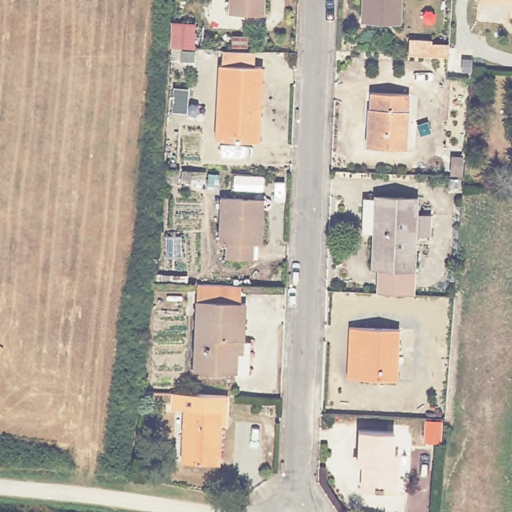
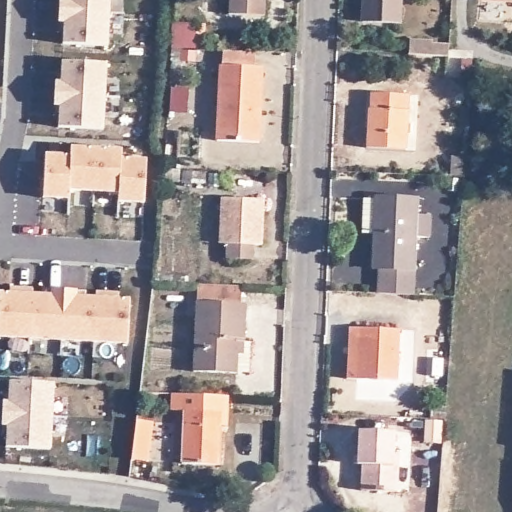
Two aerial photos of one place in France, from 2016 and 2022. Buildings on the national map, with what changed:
new [(110,0),(109,12),(59,10),(59,0),(110,0)]
unchanged [(229,13),(230,0),(265,0),(264,15),(229,13)]
unchanged [(358,19),(359,0),(397,0),(396,20),(358,19)]
unchanged [(506,0),(512,0),(512,1),(506,0)]
new [(59,10),(109,12),(107,46),(63,44),(64,25),(58,25),(59,10)]
new [(409,39),(432,40),(432,44),(448,45),(448,56),(408,55),(409,39)]
unchanged [(479,57),(478,75),(477,85),(455,83),(456,64),(457,56),(479,57)]
new [(55,80),(61,80),(62,61),(107,64),(105,96),(55,94),(55,80)]
unchanged [(260,68),(257,144),(216,141),(219,66),(260,68)]
unchanged [(367,146),(368,106),(371,106),(372,90),(408,92),(405,149),(367,146)]
new [(55,94),(105,96),(103,130),(59,127),(60,109),(54,108),(55,94)]
new [(70,155),(71,147),(96,148),(94,191),(70,190),(70,155)]
new [(96,148),(122,150),(118,192),(94,191),(96,148)]
new [(45,154),(70,155),(70,190),(69,199),(43,197),(45,154)]
new [(121,158),(146,160),(144,203),(118,201),(121,158)]
unchanged [(430,217),(429,240),(416,240),(413,294),(377,292),(378,268),(372,268),(373,228),(363,227),(365,200),(375,200),(375,198),(417,200),(417,217),(430,217)]
unchanged [(261,246),(253,246),(252,261),(224,259),(225,245),(218,244),(221,199),(263,200),(261,246)]
unchanged [(246,371),(236,370),(192,367),(197,280),(240,282),(240,299),(245,300),(244,338),(247,338),(246,371)]
new [(17,287),(32,288),(32,294),(30,338),(0,337),(0,292),(17,293),(17,287)]
new [(32,294),(50,295),(50,289),(64,290),(62,340),(30,338),(32,294)]
new [(64,290),(79,290),(78,296),(96,297),(94,342),(62,340),(64,290)]
new [(96,297),(96,291),(111,292),(111,298),(130,299),(127,343),(94,342),(96,297)]
unchanged [(347,343),(348,326),(398,329),(396,380),(357,378),(346,378),(347,343)]
new [(2,399),(9,400),(10,381),(54,383),(52,416),(2,413),(2,399)]
unchanged [(220,412),(218,467),(180,464),(182,410),(220,412)]
new [(2,413),(52,416),(51,449),(6,447),(7,428),(1,428),(2,413)]
unchanged [(362,470),(357,470),(358,435),(392,436),(392,460),(397,460),(396,497),(361,495),(362,470)]
unchanged [(511,510),(512,501),(512,512),(511,512),(511,510)]

